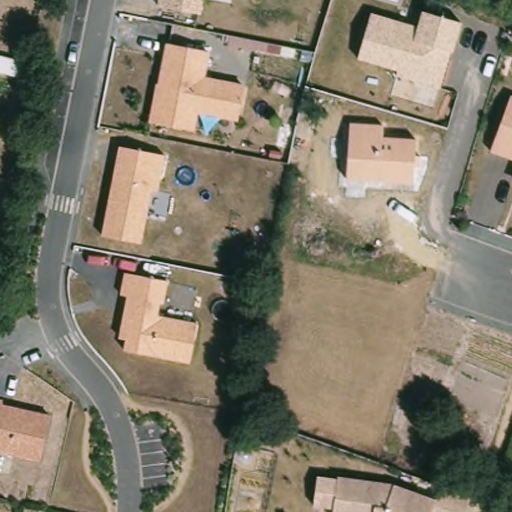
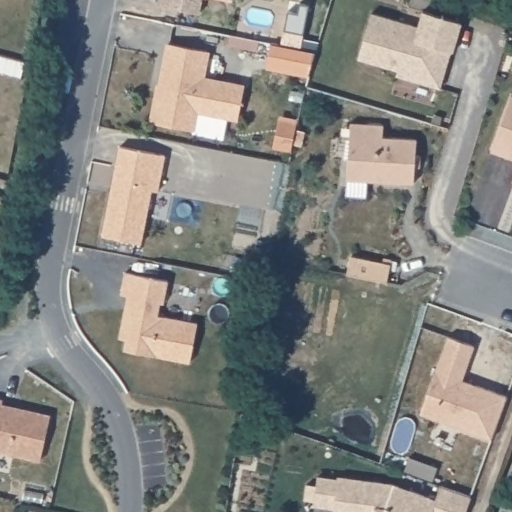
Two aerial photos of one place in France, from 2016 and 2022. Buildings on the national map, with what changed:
unchanged [(201,15),(160,7),(161,0),(204,0),(201,15)]
unchanged [(395,76),(397,69),(361,59),(372,14),(417,25),(421,12),(461,21),(441,90),(395,76)]
unchanged [(195,132),(149,123),(166,43),(210,52),(205,77),(246,85),(238,121),(198,113),(195,132)]
unchanged [(512,109),(512,154),(497,148),(512,109)]
unchanged [(347,180),(350,122),(384,123),(383,137),(415,138),(412,182),(347,180)]
unchanged [(142,244),(102,238),(118,146),(167,155),(159,195),(150,193),(142,244)]
new [(355,259),(393,267),(390,284),(351,276),(355,259)]
unchanged [(122,296),(125,273),(170,280),(166,306),(162,305),(160,316),(198,324),(191,364),(125,353),(126,341),(122,341),(129,299),(122,296)]
new [(448,336),(474,346),(461,379),(507,396),(492,439),(420,413),(448,336)]
unchanged [(52,415),(41,461),(0,453),(0,398),(6,399),(4,405),(52,415)]
unchanged [(338,512),(339,504),(325,501),(328,482),(342,484),(344,473),(399,483),(441,498),(446,483),(477,494),(470,512),(338,512)]

